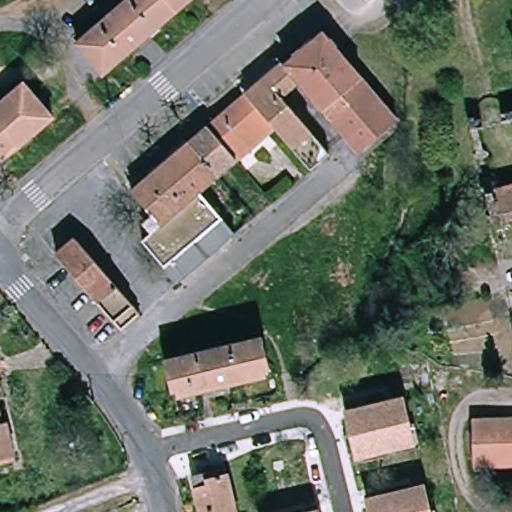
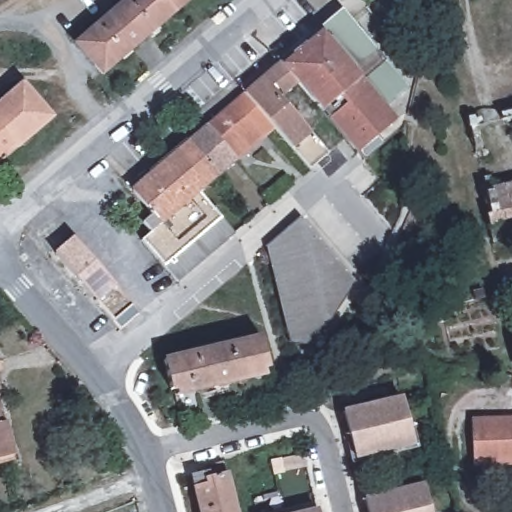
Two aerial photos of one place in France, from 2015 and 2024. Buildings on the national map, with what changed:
unchanged [(102,75),(75,43),(126,0),(192,0),(102,75)]
unchanged [(330,35),(400,117),(402,121),(399,124),(385,135),(363,153),(317,99),(290,66),(330,35)]
unchanged [(300,115),(336,158),(318,173),(250,92),(287,63),(290,66),(317,99),(300,115)]
unchanged [(25,82),(51,114),(15,146),(8,139),(0,146),(0,102),(25,82)]
unchanged [(248,94),(276,127),(258,142),(230,109),(248,94)]
unchanged [(191,139),(208,126),(230,109),(258,142),(236,160),(219,173),(203,186),(202,194),(235,233),(178,279),(143,237),(151,229),(145,221),(153,214),(130,189),(167,159),(191,139)]
unchanged [(485,189),(512,183),(512,235),(497,238),(485,189)]
new [(301,216),(356,281),(327,327),(309,345),(290,344),(267,247),(301,216)]
unchanged [(139,308),(119,324),(55,246),(76,228),(139,308)]
unchanged [(268,337),(275,368),(268,370),(270,377),(181,399),(180,392),(175,393),(166,361),(268,337)]
unchanged [(345,435),(350,434),(345,415),(402,401),(413,446),(357,459),(355,453),(350,455),(345,435)]
unchanged [(15,453),(1,456),(0,456),(0,412),(0,414),(5,412),(15,453)]
unchanged [(512,460),(476,460),(477,415),(512,415),(512,460)]
unchanged [(202,471),(201,464),(224,459),(237,512),(200,512),(191,474),(202,471)]
unchanged [(423,485),(430,512),(371,512),(368,500),(423,485)]
unchanged [(324,512),(296,512),(322,506),(324,512)]

